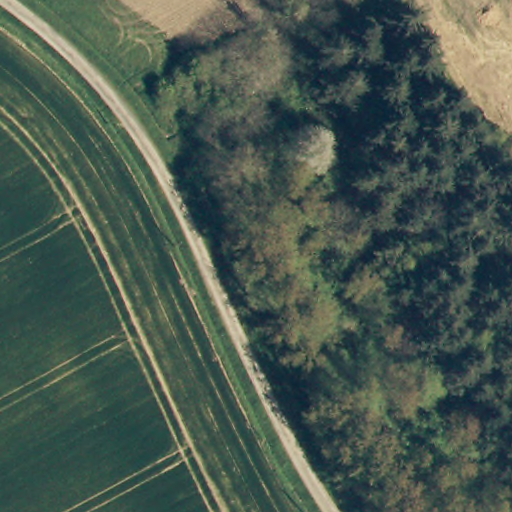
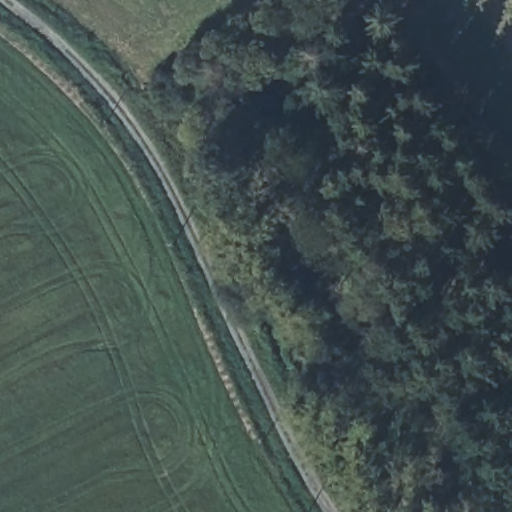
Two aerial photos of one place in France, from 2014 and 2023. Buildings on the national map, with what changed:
[]

